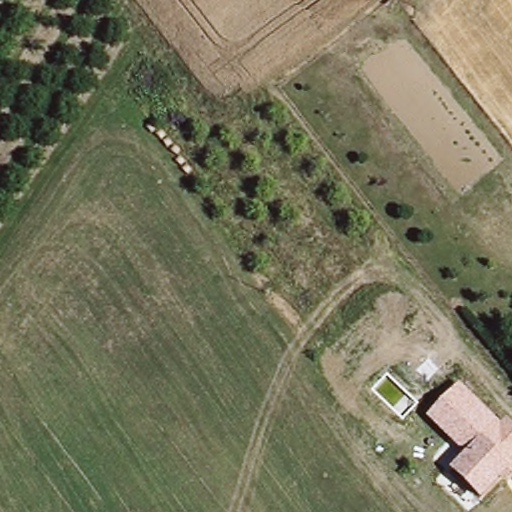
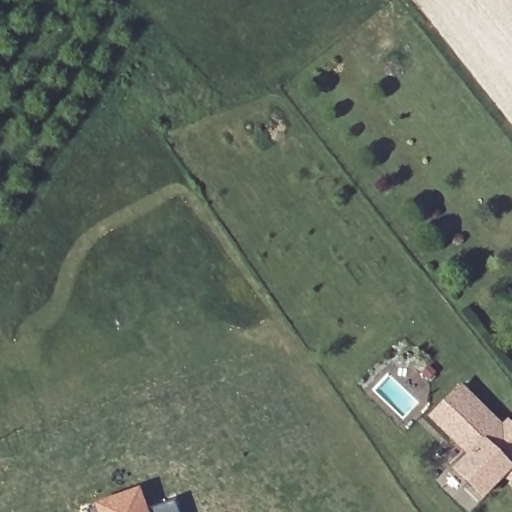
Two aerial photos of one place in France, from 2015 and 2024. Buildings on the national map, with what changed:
unchanged [(501,425),(508,418),(512,423),(512,478),(508,483),(503,478),(483,497),(452,467),(464,453),(426,418),(458,384),(501,425)]
new [(138,487),(147,509),(148,512),(91,512),(88,505),(138,487)]
new [(178,512),(148,512),(147,509),(174,499),(178,512)]

